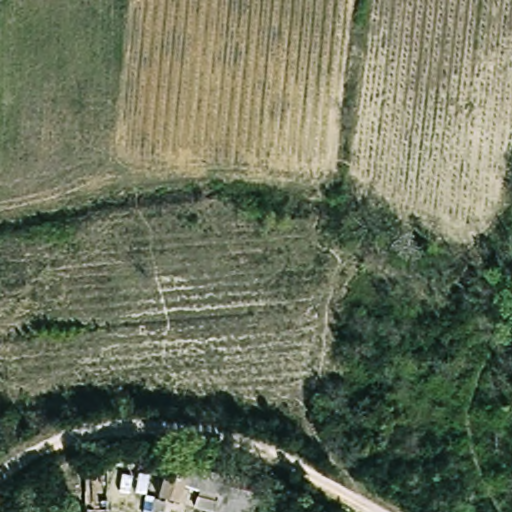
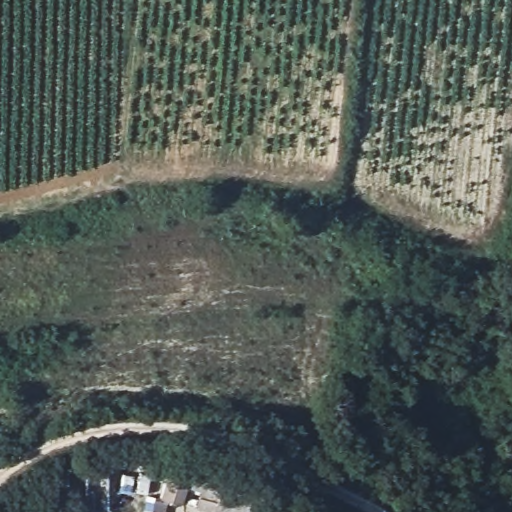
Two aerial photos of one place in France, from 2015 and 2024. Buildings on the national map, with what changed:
unchanged [(226,512),(229,500),(193,491),(188,508),(169,503),(175,477),(194,482),(198,468),(273,487),(266,512),(226,512)]

